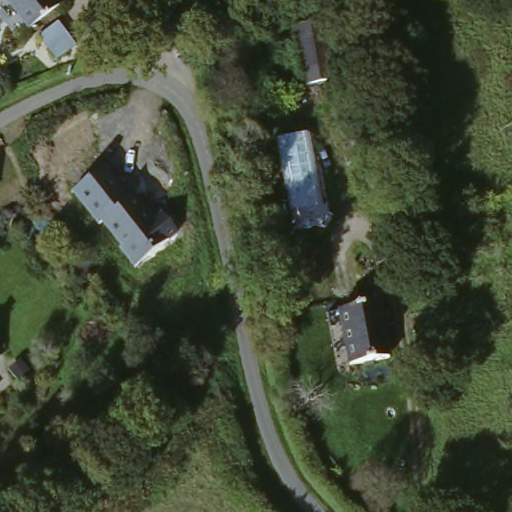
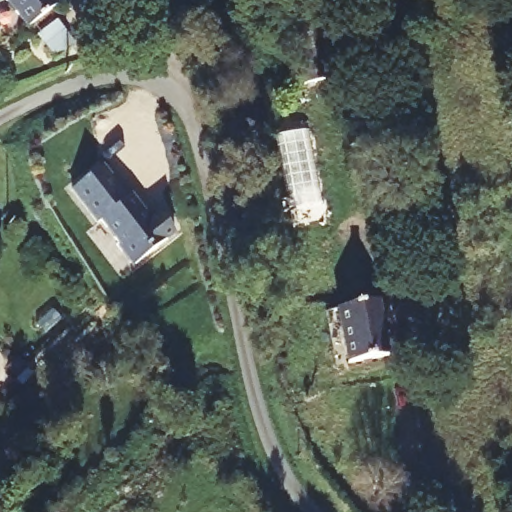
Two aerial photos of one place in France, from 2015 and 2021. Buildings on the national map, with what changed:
unchanged [(55,10),(24,33),(0,4),(0,0),(47,0),(55,10)]
unchanged [(303,93),(289,34),(320,26),(335,85),(303,93)]
unchanged [(32,44),(54,29),(71,52),(51,67),(32,44)]
unchanged [(137,265),(102,222),(98,226),(70,195),(102,168),(129,197),(137,191),(177,235),(137,265)]
unchanged [(384,365),(343,375),(330,320),(370,309),(384,365)]

